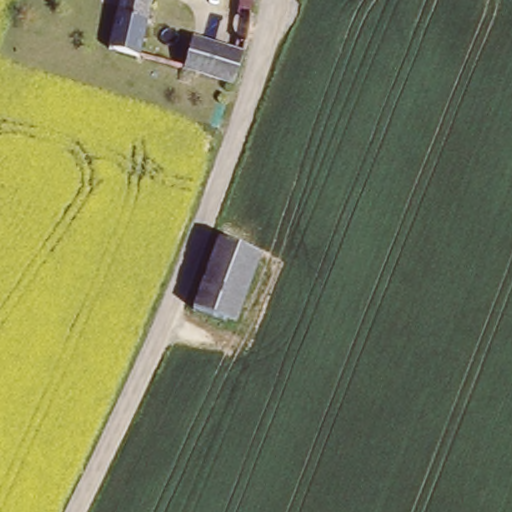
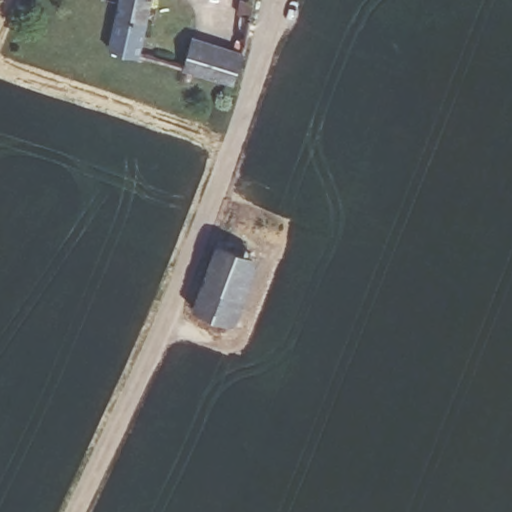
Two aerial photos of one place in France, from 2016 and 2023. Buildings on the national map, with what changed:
unchanged [(149,0),(137,58),(104,51),(115,0),(149,0)]
unchanged [(177,68),(183,36),(235,48),(222,78),(177,68)]
unchanged [(212,238),(257,254),(233,324),(190,308),(212,238)]

